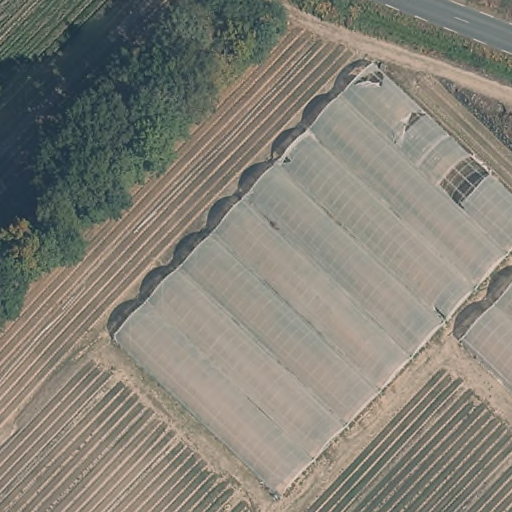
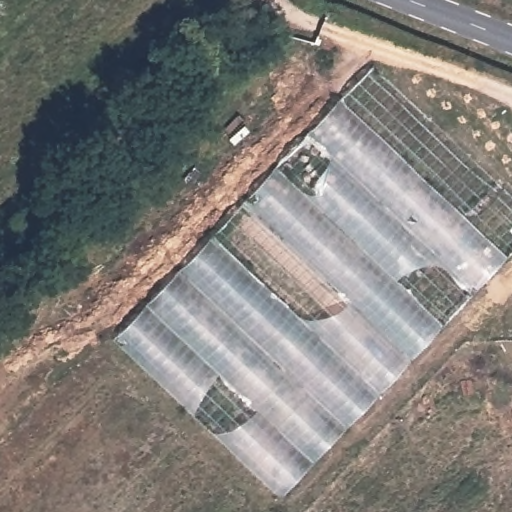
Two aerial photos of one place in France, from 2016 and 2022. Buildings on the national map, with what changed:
unchanged [(512,193),(512,258),(281,496),(113,335),(369,58),(512,193)]
demolished [(512,393),(460,343),(512,288),(512,393)]

